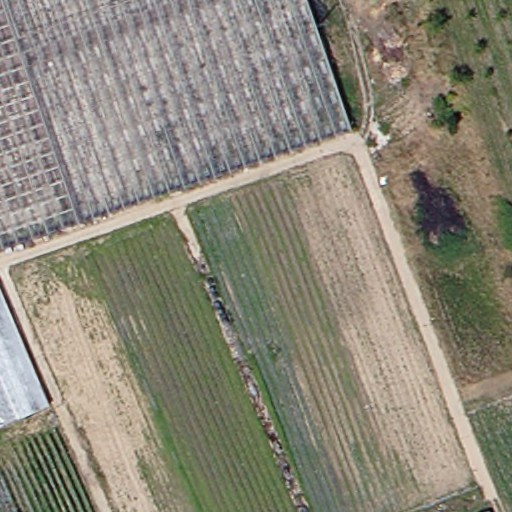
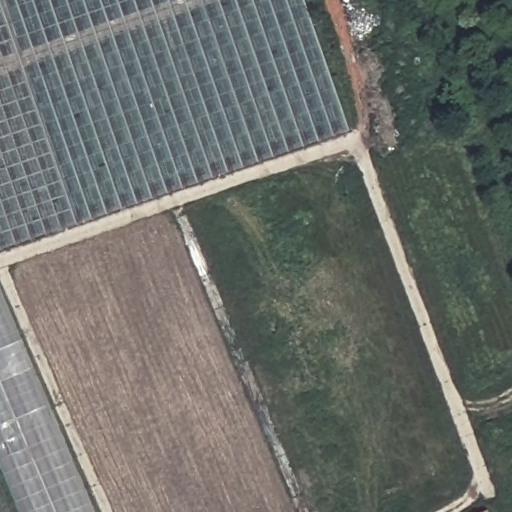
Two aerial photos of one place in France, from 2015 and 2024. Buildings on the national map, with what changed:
unchanged [(108,57),(158,196),(0,250),(0,0),(88,0),(108,57)]
unchanged [(353,130),(158,196),(108,57),(88,0),(308,0),(353,130)]
unchanged [(38,407),(0,424),(0,309),(38,407)]
new [(51,404),(96,512),(18,512),(0,471),(0,425),(51,404)]
new [(492,512),(485,512),(490,509),(492,512)]

